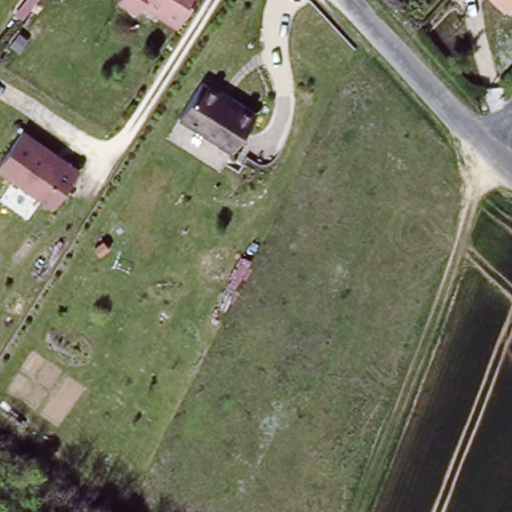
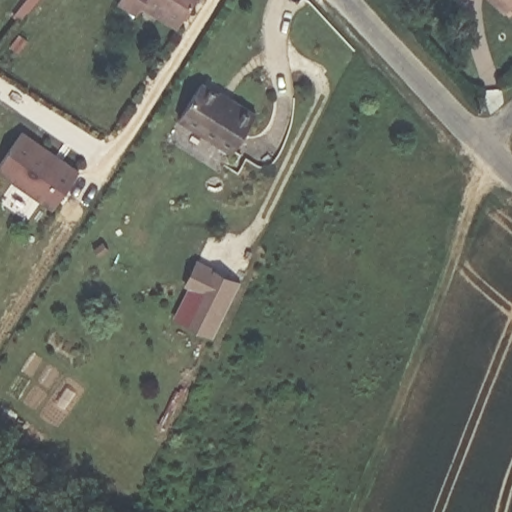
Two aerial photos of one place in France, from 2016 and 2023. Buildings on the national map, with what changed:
unchanged [(175,29),(174,30),(140,9),(134,18),(115,6),(119,0),(193,0),(175,29)]
unchanged [(232,99),(234,97),(258,113),(233,150),(180,117),(203,81),(232,99)]
unchanged [(76,173),(51,208),(0,168),(0,161),(22,129),(76,173)]
new [(197,259),(240,280),(214,333),(170,313),(197,259)]

